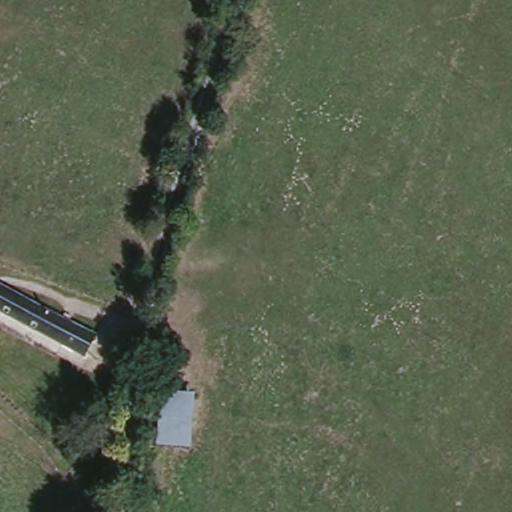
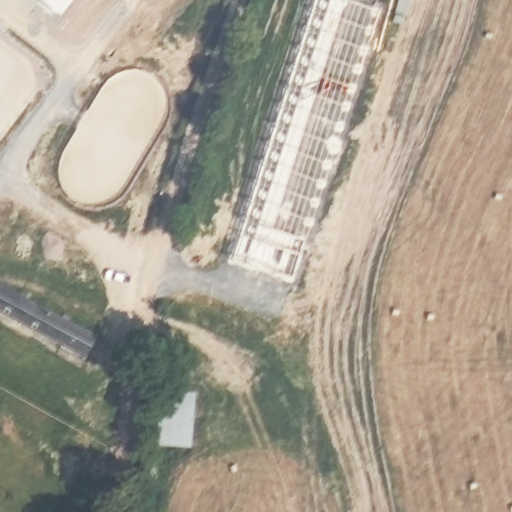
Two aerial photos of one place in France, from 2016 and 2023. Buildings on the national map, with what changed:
new [(33,0),(72,0),(57,20),(33,0)]
new [(292,282),(229,260),(313,0),(346,0),(384,14),(292,282)]
unchanged [(96,340),(87,357),(0,307),(0,288),(3,283),(96,340)]
unchanged [(187,387),(182,447),(155,443),(162,384),(187,387)]

